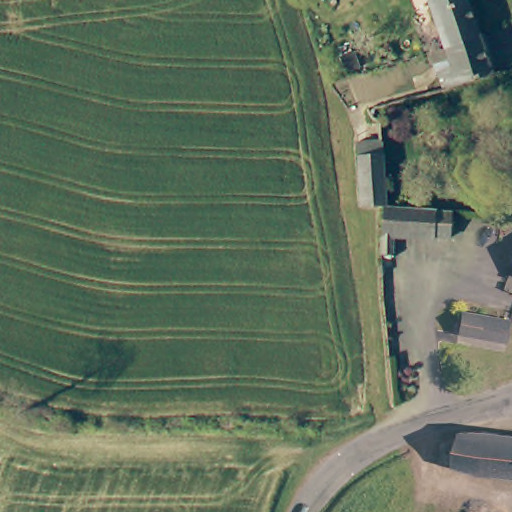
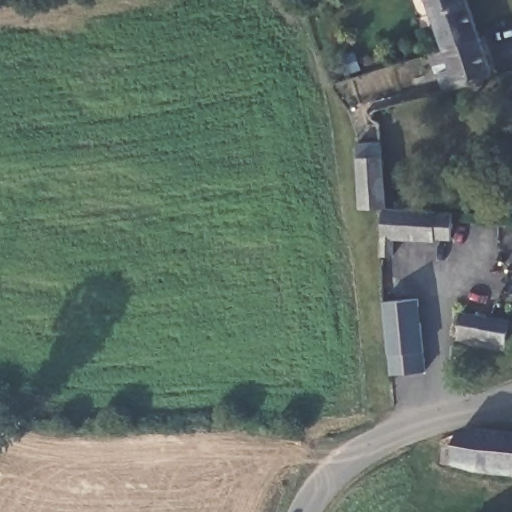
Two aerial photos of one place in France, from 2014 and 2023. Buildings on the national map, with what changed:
unchanged [(443,40),(429,0),(471,0),(481,26),(443,40)]
unchanged [(438,65),(451,59),(443,40),(481,26),(495,65),(460,78),(446,84),(438,65)]
unchanged [(360,204),(356,141),(372,141),(373,154),(387,154),(388,203),(360,204)]
unchanged [(394,251),(392,234),(388,203),(395,204),(462,206),(461,236),(405,234),(406,251),(394,251)]
new [(391,375),(383,299),(421,297),(429,372),(391,375)]
unchanged [(510,338),(481,336),(461,333),(462,316),(463,311),(512,315),(512,320),(510,338)]
unchanged [(459,461),(461,445),(463,422),(512,429),(512,469),(459,461)]

